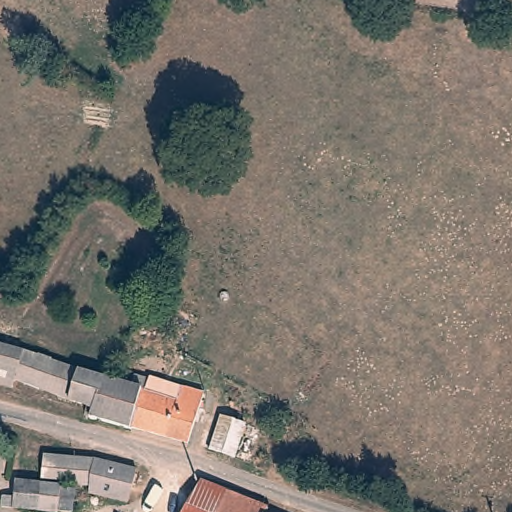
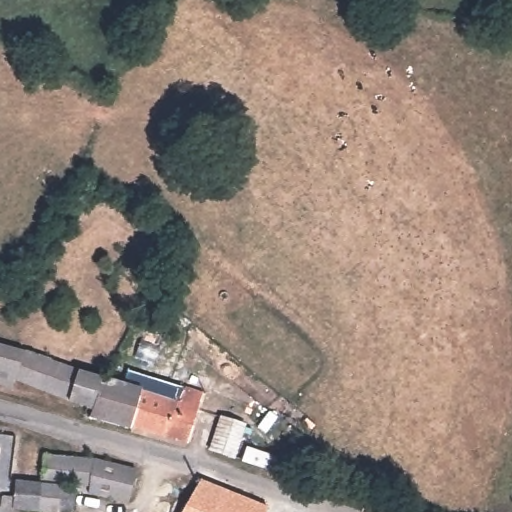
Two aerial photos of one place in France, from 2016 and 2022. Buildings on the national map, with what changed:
unchanged [(15,380),(13,388),(0,385),(0,345),(23,351),(15,380)]
unchanged [(68,400),(39,388),(39,389),(15,380),(23,351),(51,361),(78,371),(105,379),(93,409),(92,408),(68,400)]
unchanged [(111,380),(132,386),(135,375),(148,380),(148,377),(179,387),(203,395),(188,444),(131,428),(131,430),(89,418),(92,408),(93,409),(105,379),(111,380)]
unchanged [(220,417),(223,410),(243,416),(240,423),(260,430),(250,462),(209,449),(220,418),(220,417)]
unchanged [(45,482),(48,455),(99,460),(95,486),(45,482)]
unchanged [(141,471),(132,503),(93,493),(95,487),(95,486),(99,460),(141,471)]
unchanged [(64,512),(53,512),(17,508),(6,507),(8,497),(18,498),(19,482),(66,486),(66,488),(79,490),(78,512),(64,512)]
unchanged [(271,512),(190,512),(205,485),(271,512)]

